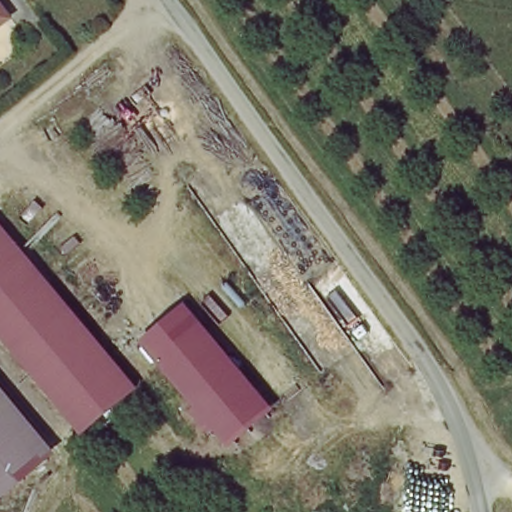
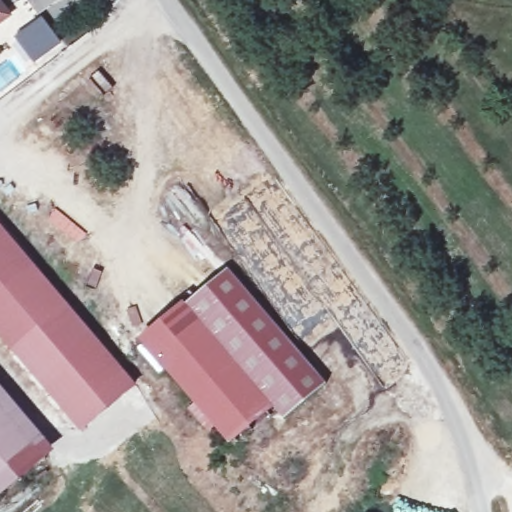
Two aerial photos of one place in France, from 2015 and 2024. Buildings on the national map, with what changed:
unchanged [(1,19),(0,20),(0,18),(1,19)]
new [(42,19),(61,42),(55,47),(37,61),(18,37),(35,24),(42,19)]
unchanged [(74,431),(0,342),(0,232),(130,385),(74,431)]
new [(187,307),(227,269),(325,385),(284,419),(268,401),(187,307)]
unchanged [(230,434),(226,437),(144,342),(187,307),(268,401),(245,422),(252,430),(237,442),(230,434)]
unchanged [(54,448),(0,492),(0,388),(54,448)]

